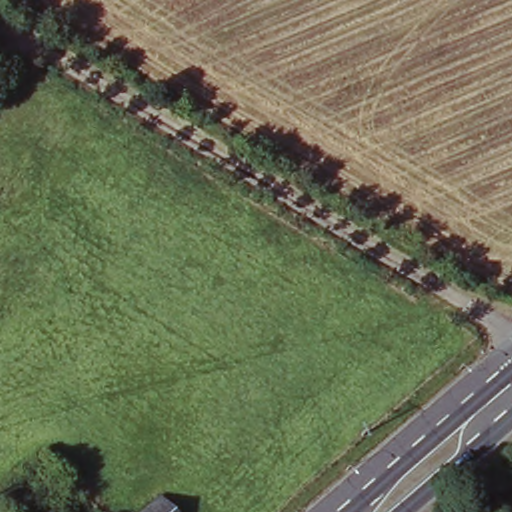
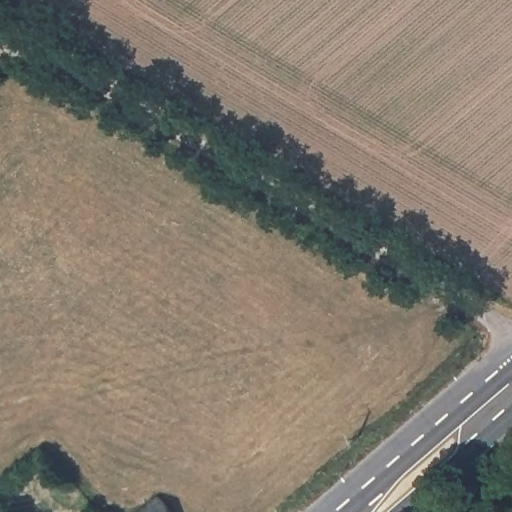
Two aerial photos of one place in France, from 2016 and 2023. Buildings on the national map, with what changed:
unchanged [(165,512),(145,512),(157,502),(165,512)]

